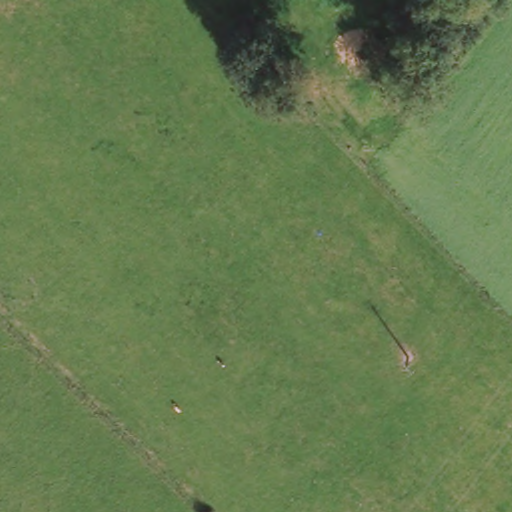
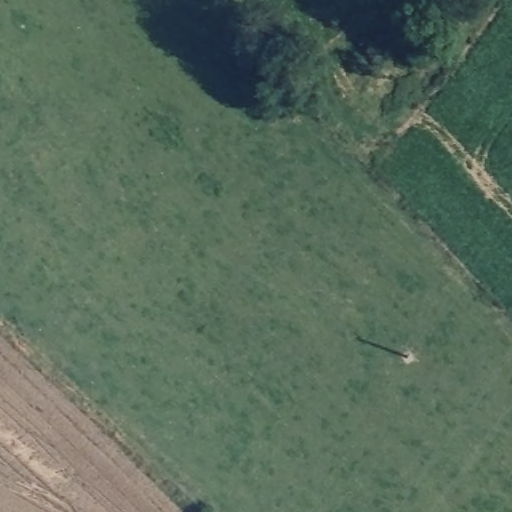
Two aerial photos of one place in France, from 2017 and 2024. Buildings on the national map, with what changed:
[]

